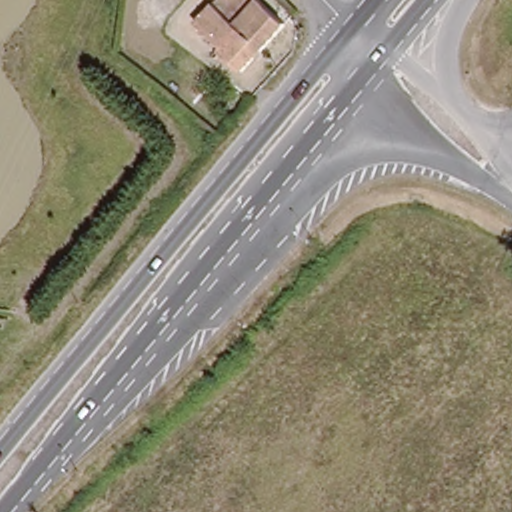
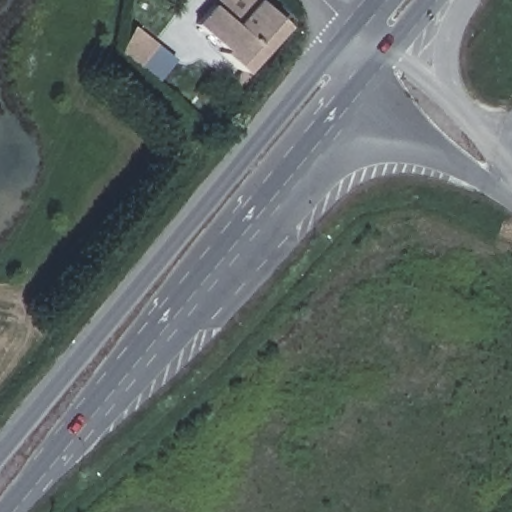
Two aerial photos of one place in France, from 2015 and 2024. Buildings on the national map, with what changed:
unchanged [(241,73),(222,55),(224,51),(199,25),(222,0),(255,0),(283,26),(241,73)]
new [(126,35),(129,30),(174,56),(160,80),(153,75),(150,81),(119,64),(120,60),(110,55),(122,33),(126,35)]

